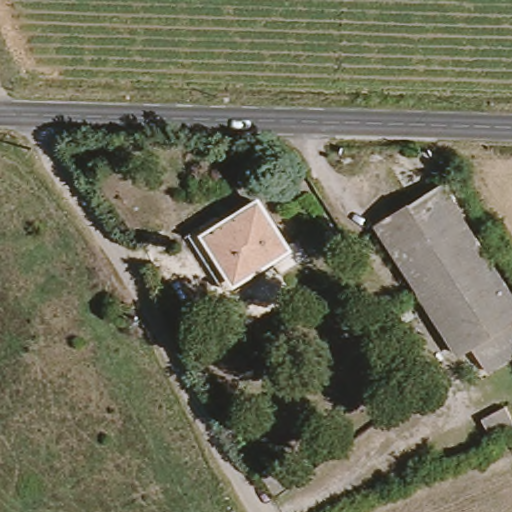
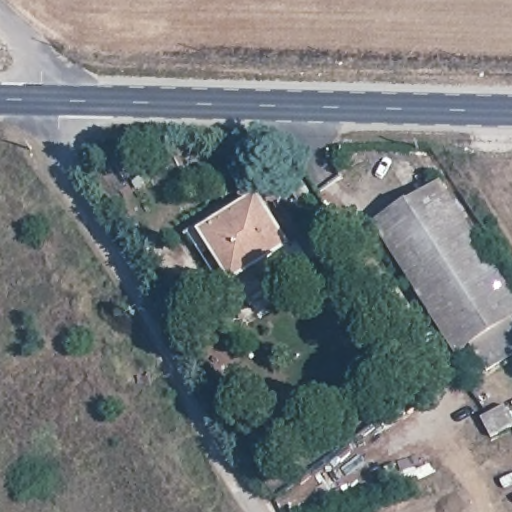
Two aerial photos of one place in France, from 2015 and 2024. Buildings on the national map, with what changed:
unchanged [(512,319),(512,356),(488,371),(471,345),(457,353),(377,226),(442,185),(512,294),(512,319)]
unchanged [(298,247),(233,288),(202,240),(268,199),(298,247)]
unchanged [(512,430),(497,437),(488,418),(510,406),(512,409),(512,430)]

